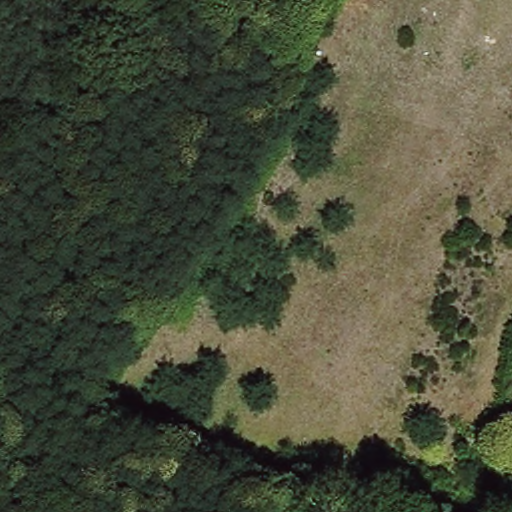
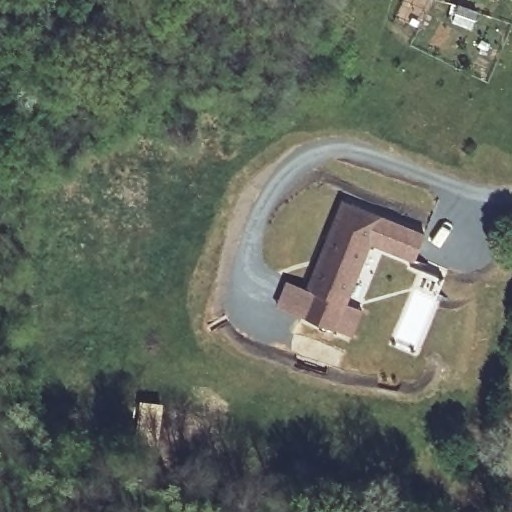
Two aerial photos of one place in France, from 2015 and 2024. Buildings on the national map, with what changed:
new [(427,233),(417,263),(372,245),(349,304),(365,310),(354,338),(276,308),(286,281),(307,289),(342,200),(427,233)]

